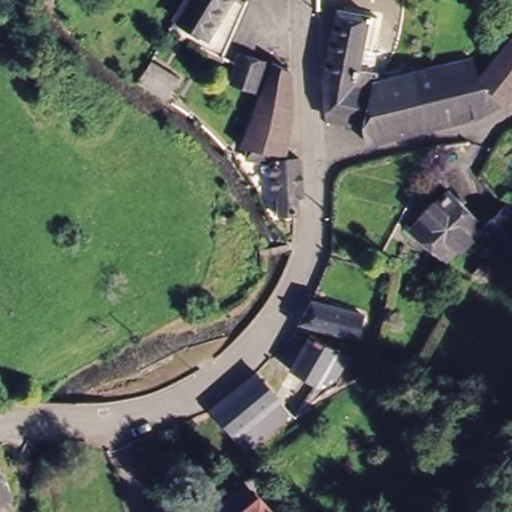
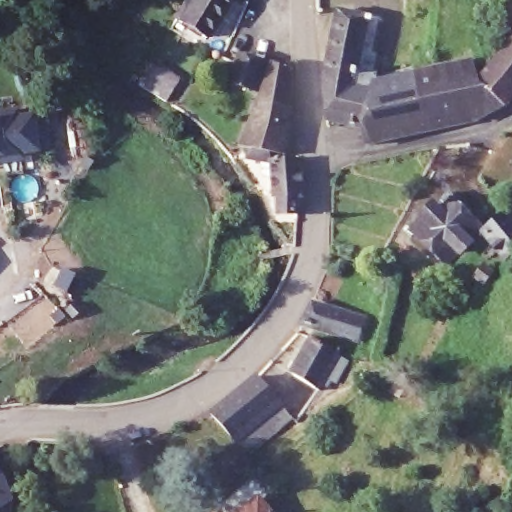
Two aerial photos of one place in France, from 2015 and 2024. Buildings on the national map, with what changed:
unchanged [(204,41),(175,23),(190,0),(228,0),(219,16),(204,41)]
unchanged [(334,10),(364,17),(377,20),(370,54),(377,57),(374,72),(372,81),(361,127),(324,118),(321,77),(334,10)]
unchanged [(472,82),(504,43),(512,33),(512,83),(499,98),(472,82)]
unchanged [(244,157),(245,148),(238,147),(249,118),(261,94),(233,80),(239,69),(247,52),(274,65),(291,70),(293,70),(294,105),(289,152),(274,151),(273,158),(288,159),(301,157),(303,197),(299,197),(298,217),(278,217),(273,161),(244,157)]
unchanged [(473,116),(364,144),(361,127),(372,81),(470,60),(472,82),(499,98),(473,116)]
unchanged [(151,62),(178,78),(164,102),(135,85),(151,62)]
new [(17,114),(31,112),(33,115),(43,112),(48,150),(38,151),(23,154),(23,160),(0,162),(0,108),(16,107),(17,114)]
unchanged [(505,213),(498,221),(512,237),(492,257),(466,229),(432,263),(397,232),(427,203),(435,194),(469,227),(471,229),(495,203),(505,213)]
unchanged [(362,318),(356,342),(300,327),(313,305),(362,318)]
unchanged [(318,388),(314,386),(290,372),(310,337),(339,352),(318,388)]
unchanged [(254,377),(276,402),(232,441),(210,413),(254,377)]
unchanged [(9,495),(0,501),(0,472),(6,482),(8,486),(9,495)]
unchanged [(262,503),(268,512),(249,512),(262,503)]

